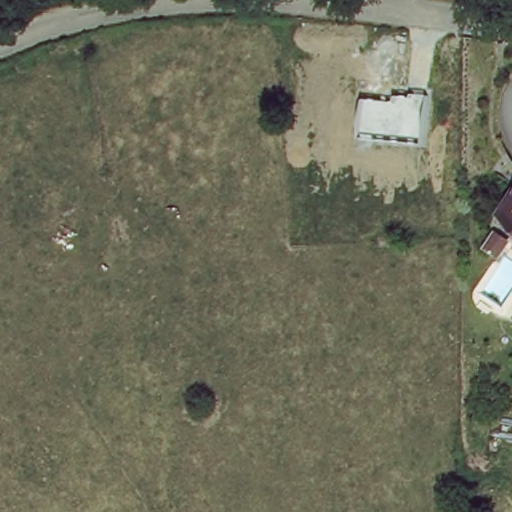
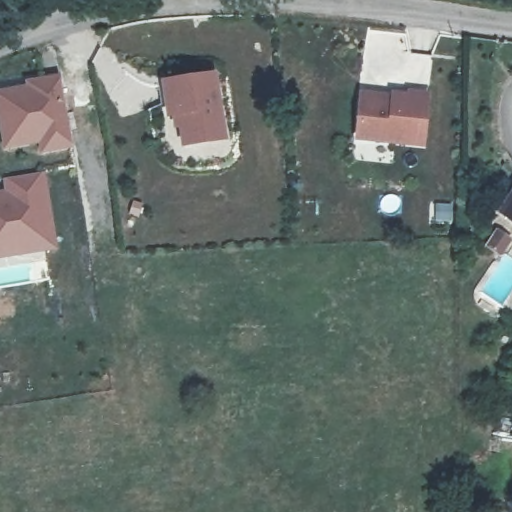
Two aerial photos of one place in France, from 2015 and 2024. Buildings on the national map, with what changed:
new [(173,129),(171,118),(166,119),(160,81),(216,72),(227,142),(180,148),(178,130),(173,129)]
new [(40,154),(38,144),(3,149),(0,134),(0,90),(26,85),(25,81),(58,76),(72,148),(40,154)]
unchanged [(392,101),(393,93),(426,95),(421,144),(357,139),(362,99),(392,101)]
new [(0,259),(0,190),(5,190),(4,181),(44,174),(56,250),(0,259)]
unchanged [(503,210),(512,195),(512,216),(503,210)]

